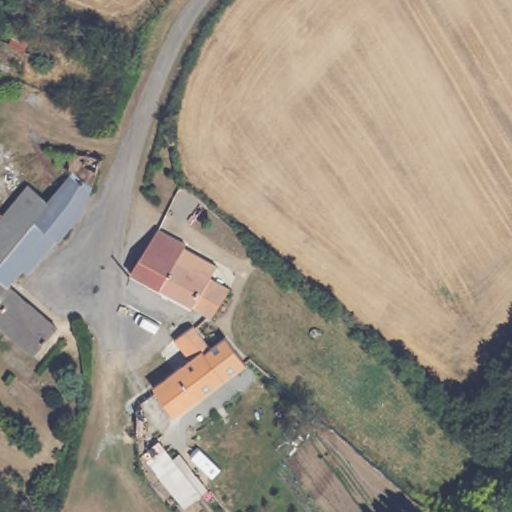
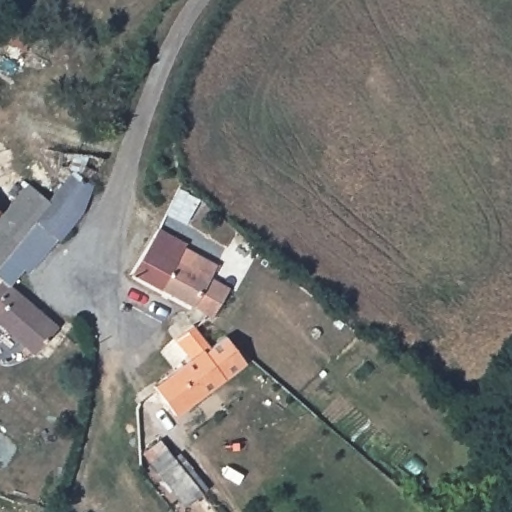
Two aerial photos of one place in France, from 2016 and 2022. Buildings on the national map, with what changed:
unchanged [(14,44),(20,26),(62,45),(53,61),(14,44)]
unchanged [(51,198),(75,170),(69,164),(75,148),(102,155),(81,210),(60,240),(56,237),(30,269),(24,265),(10,282),(57,323),(35,351),(0,321),(0,277),(0,276),(0,214),(3,210),(29,180),(51,198)]
unchanged [(0,214),(0,208),(3,210),(0,214)]
unchanged [(214,262),(207,273),(227,287),(212,316),(208,315),(130,275),(157,232),(214,262)]
unchanged [(212,350),(227,338),(247,363),(177,417),(155,392),(154,387),(188,358),(173,341),(194,326),(196,329),(212,350)]
unchanged [(163,441),(200,484),(184,498),(147,454),(163,441)]

